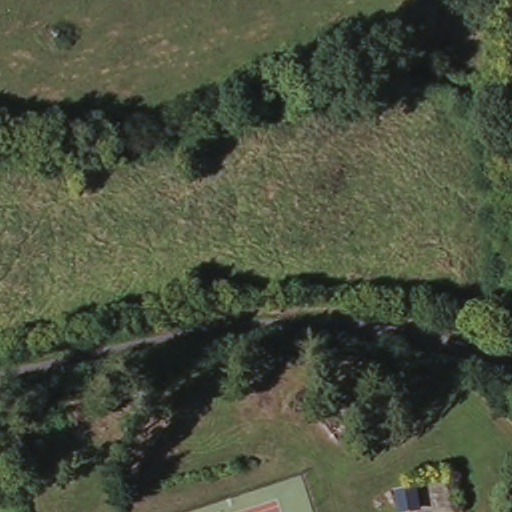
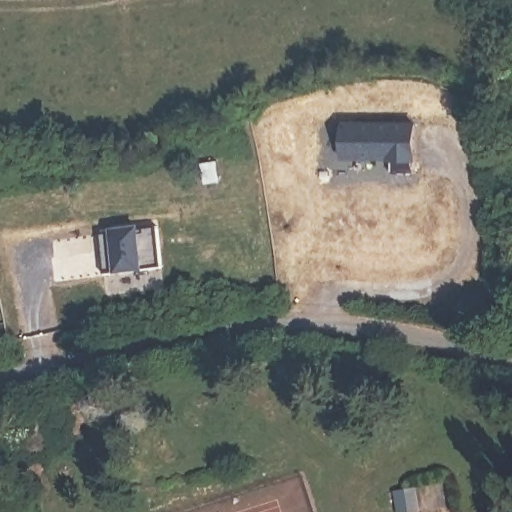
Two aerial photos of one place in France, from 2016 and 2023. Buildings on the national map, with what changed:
new [(416,124),(417,170),(391,171),(390,162),(342,160),(342,123),(416,124)]
new [(157,229),(162,273),(145,274),(145,278),(116,280),(116,279),(105,279),(101,233),(157,229)]
new [(418,486),(421,508),(397,512),(395,490),(418,486)]

